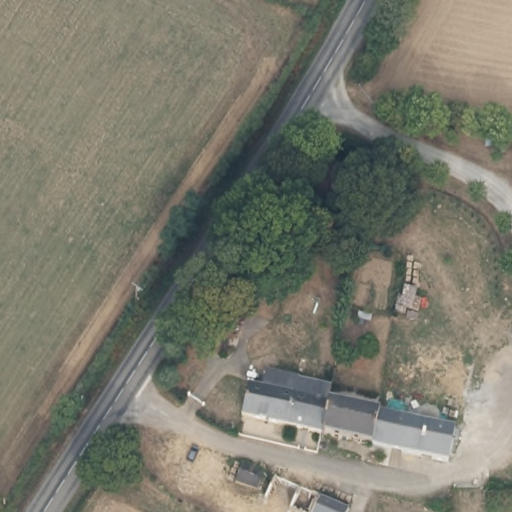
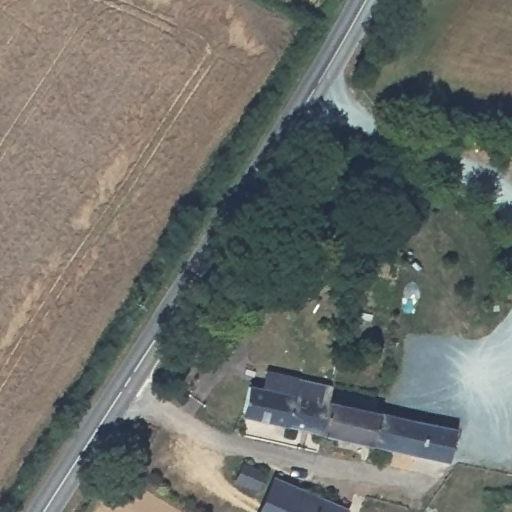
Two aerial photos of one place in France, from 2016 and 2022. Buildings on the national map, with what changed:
unchanged [(240,420),(240,419),(245,387),(263,390),(266,373),(330,384),(327,403),(332,404),(324,438),(240,420)]
unchanged [(434,460),(324,438),(332,404),(454,429),(449,447),(446,462),(434,460)]
new [(273,476),(349,509),(348,512),(257,512),(264,495),(233,482),(240,462),(273,476)]
demolished [(294,512),(268,498),(278,477),(316,495),(348,510),(347,512),(294,512)]

